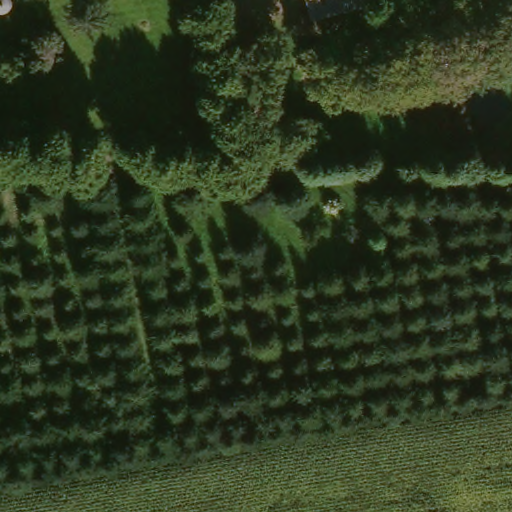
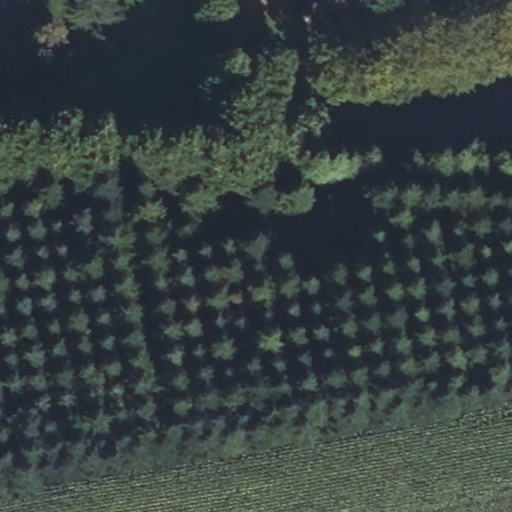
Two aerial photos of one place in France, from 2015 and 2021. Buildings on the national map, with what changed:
unchanged [(365,14),(326,27),(315,0),(359,0),(365,14)]

